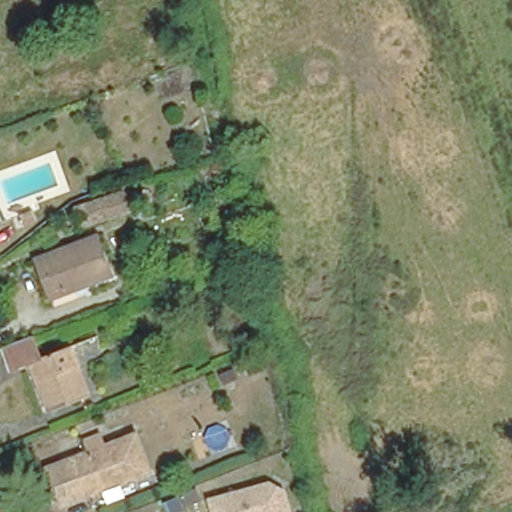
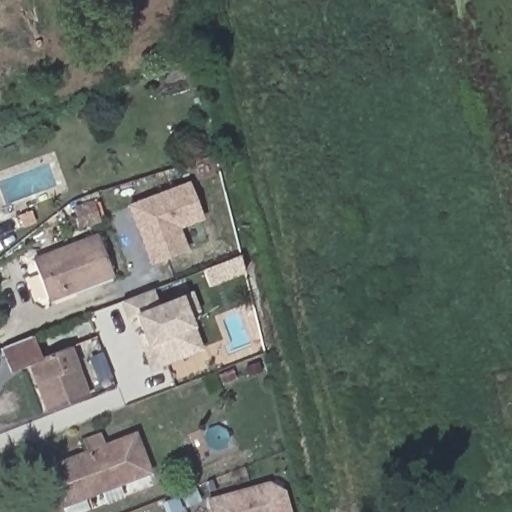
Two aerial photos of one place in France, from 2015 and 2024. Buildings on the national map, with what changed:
new [(151,265),(127,205),(190,182),(203,221),(181,228),(189,250),(151,265)]
unchanged [(132,209),(80,226),(79,221),(74,222),(71,215),(75,213),(72,206),(125,189),(132,209)]
unchanged [(36,221),(23,226),(19,214),(32,210),(36,221)]
unchanged [(112,273),(48,297),(33,258),(97,235),(112,273)]
new [(210,287),(203,270),(239,255),(246,272),(210,287)]
new [(156,292),(161,307),(195,293),(202,311),(192,315),(196,327),(182,332),(191,355),(154,369),(145,345),(150,342),(140,316),(132,319),(125,303),(156,292)]
unchanged [(50,405),(31,357),(12,364),(2,342),(32,331),(39,352),(71,340),(89,391),(50,405)]
unchanged [(152,471),(64,503),(50,467),(90,451),(85,439),(100,433),(105,446),(137,433),(152,471)]
unchanged [(207,497),(271,481),(288,491),(293,512),(211,512),(207,497)]

